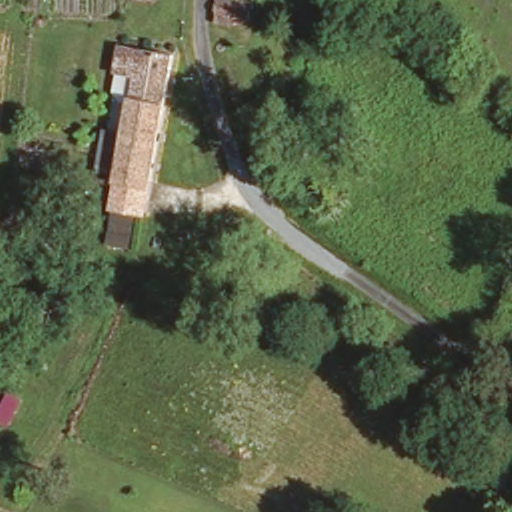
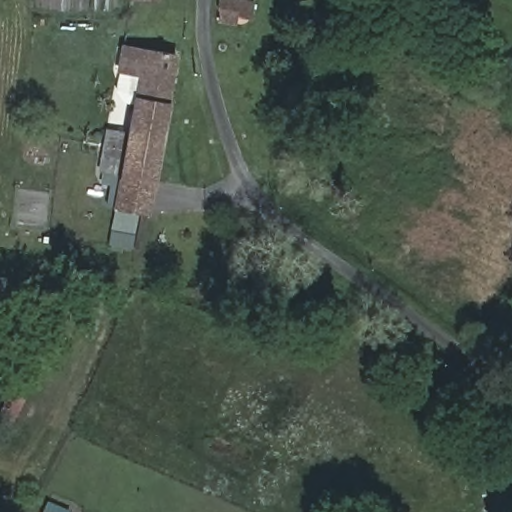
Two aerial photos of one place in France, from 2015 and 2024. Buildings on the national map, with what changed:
unchanged [(216,0),(248,0),(252,1),(248,26),(212,18),(216,0)]
unchanged [(138,211),(105,204),(110,187),(92,183),(96,161),(114,165),(129,92),(109,88),(114,67),(121,27),(141,32),(174,39),(138,211)]

